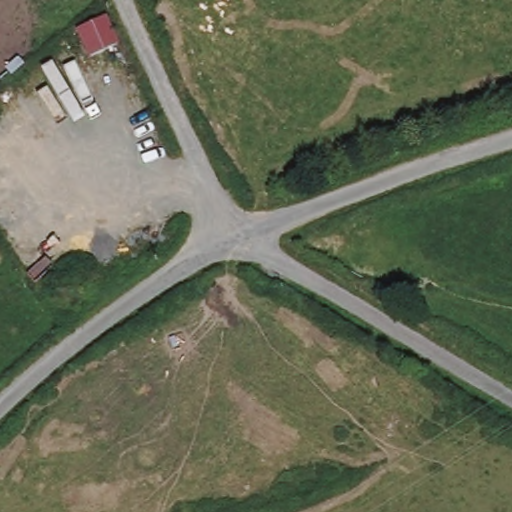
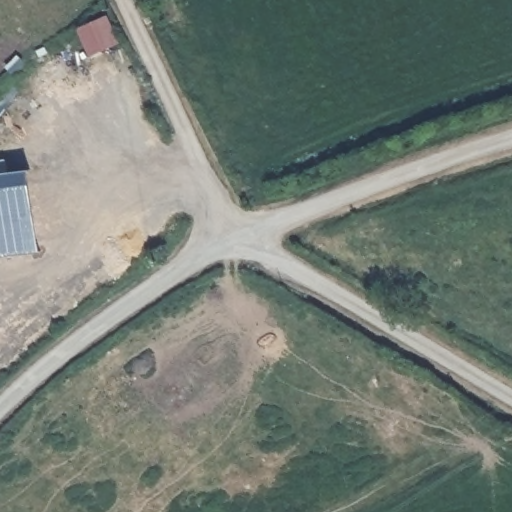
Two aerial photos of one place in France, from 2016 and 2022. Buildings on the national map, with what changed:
new [(39,252),(0,257),(0,173),(29,169),(39,252)]

